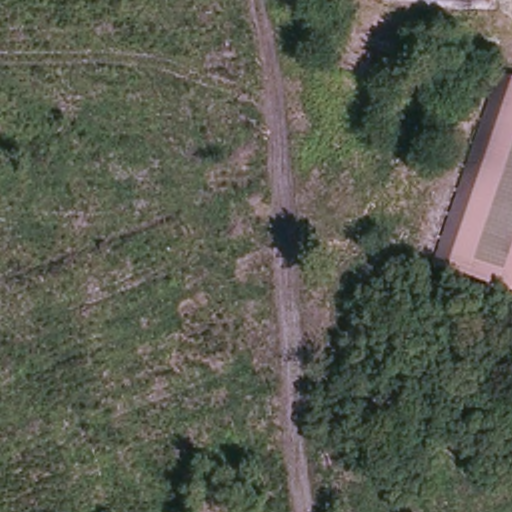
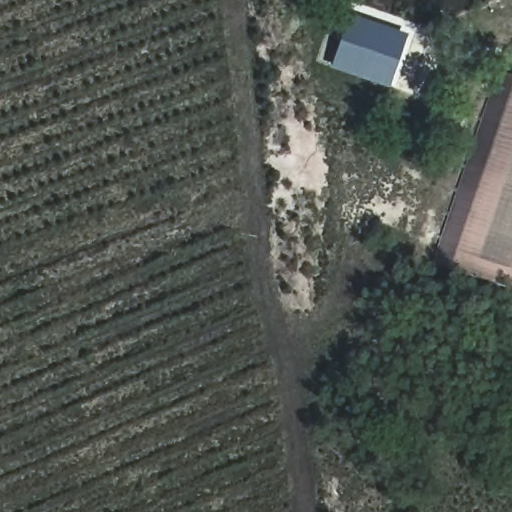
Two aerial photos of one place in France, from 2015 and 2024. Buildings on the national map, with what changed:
new [(388,89),(330,68),(347,14),(406,33),(388,89)]
unchanged [(438,271),(506,75),(512,77),(512,294),(438,271)]

